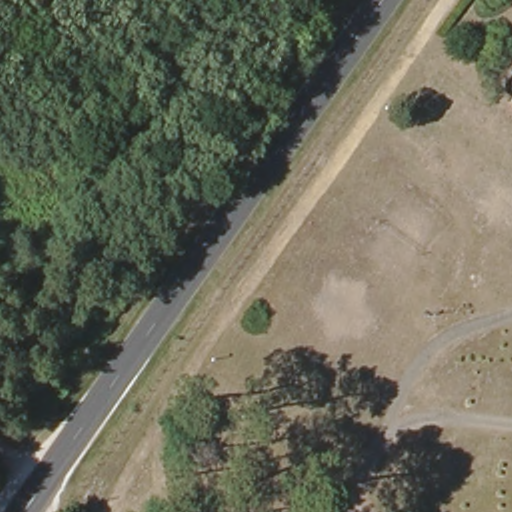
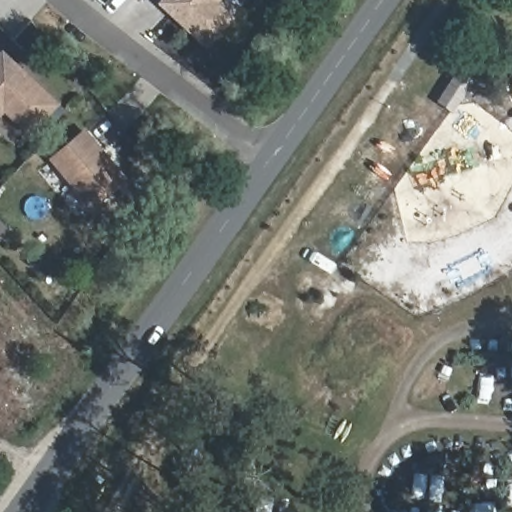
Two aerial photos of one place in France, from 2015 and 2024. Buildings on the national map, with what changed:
new [(233,19),(205,49),(157,4),(161,0),(221,0),(218,4),(233,19)]
new [(4,114),(0,118),(0,52),(1,50),(60,104),(29,137),(4,114)]
new [(508,85),(512,79),(512,87),(508,85)]
new [(90,211),(50,159),(84,129),(126,180),(90,211)]

